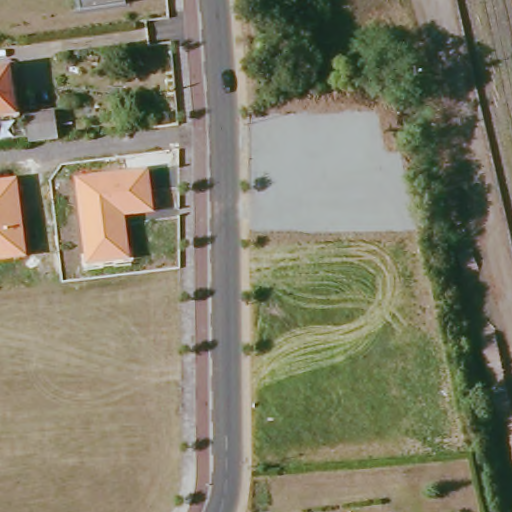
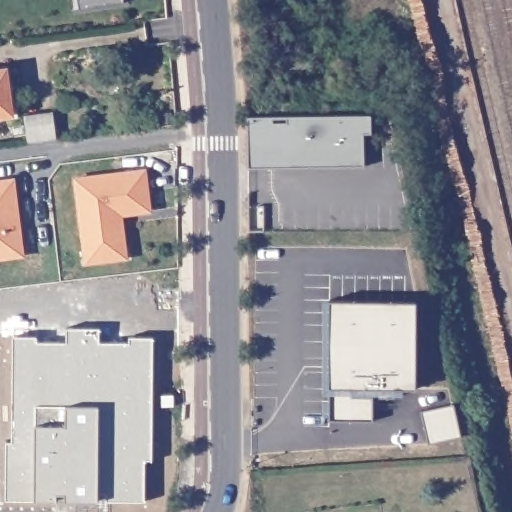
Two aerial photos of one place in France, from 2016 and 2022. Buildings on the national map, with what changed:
unchanged [(77,0),(122,0),(122,1),(78,8),(77,0)]
unchanged [(1,71),(7,113),(0,115),(0,71),(1,71)]
new [(258,114),(375,112),(376,132),(367,132),(368,165),(267,167),(267,160),(252,160),(252,167),(249,167),(248,115),(258,114)]
unchanged [(19,117),(47,113),(50,139),(23,143),(19,117)]
unchanged [(153,213),(125,216),(129,260),(86,265),(75,178),(148,169),(153,213)]
unchanged [(26,257),(0,261),(0,181),(16,179),(26,257)]
new [(331,300),(418,301),(418,390),(396,390),(396,399),(374,399),(374,423),(329,422),(331,300)]
new [(146,464),(146,503),(6,504),(8,443),(13,443),(14,339),(38,338),(38,344),(68,344),(68,330),(99,330),(101,345),(128,348),(128,339),(154,339),(154,464),(146,464)]
new [(456,405),(463,438),(429,445),(423,412),(456,405)]

